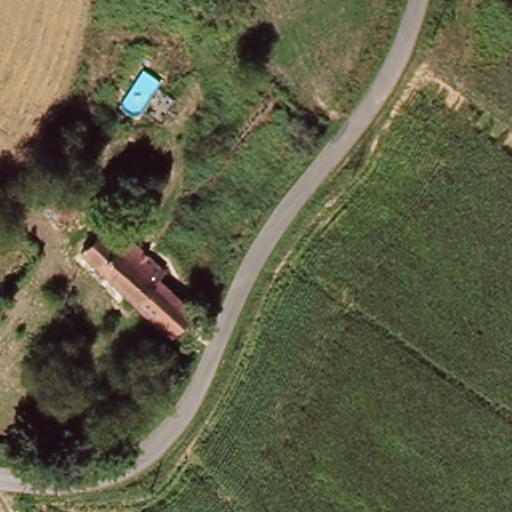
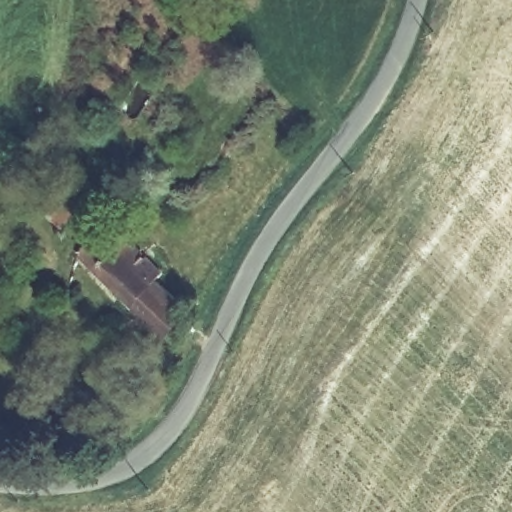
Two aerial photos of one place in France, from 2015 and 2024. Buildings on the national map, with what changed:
unchanged [(79,256),(111,220),(167,269),(159,278),(192,308),(171,331),(136,305),(79,256)]

